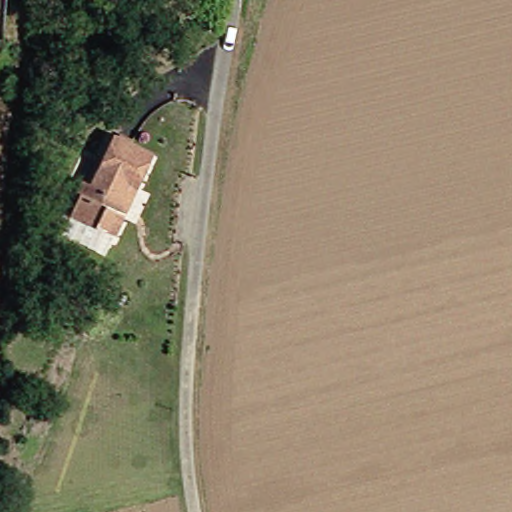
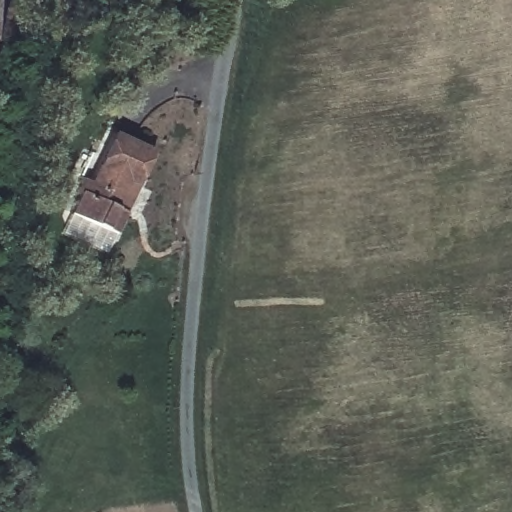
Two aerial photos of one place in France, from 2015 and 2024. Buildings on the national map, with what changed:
unchanged [(113,229),(65,209),(75,186),(70,183),(75,172),(88,178),(107,129),(147,146),(134,177),(122,206),(113,229)]

